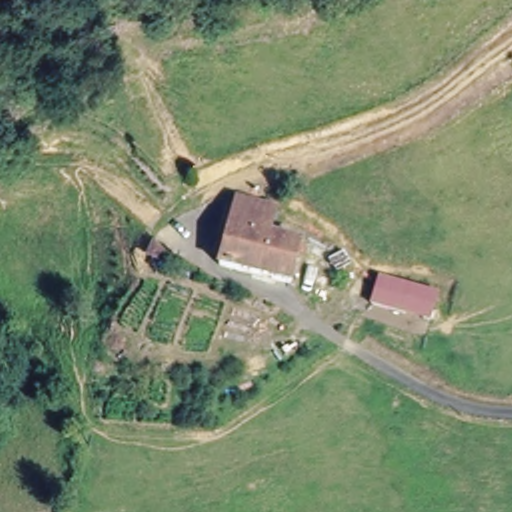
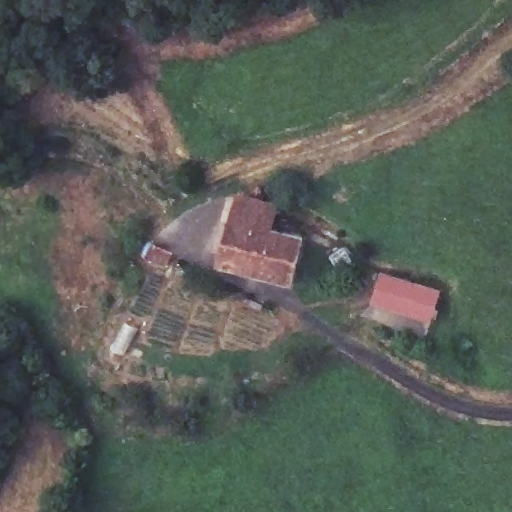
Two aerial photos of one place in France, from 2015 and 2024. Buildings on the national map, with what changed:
unchanged [(279,207),(276,224),(304,234),(301,243),(230,224),(236,202),(238,195),(244,197),(279,207)]
unchanged [(291,284),(217,266),(230,224),(301,243),(291,284)]
unchanged [(131,248),(138,234),(152,239),(158,242),(152,256),(145,253),(131,248)]
unchanged [(354,279),(349,264),(366,259),(372,274),(354,279)]
unchanged [(374,305),(381,277),(441,292),(434,323),(374,305)]

